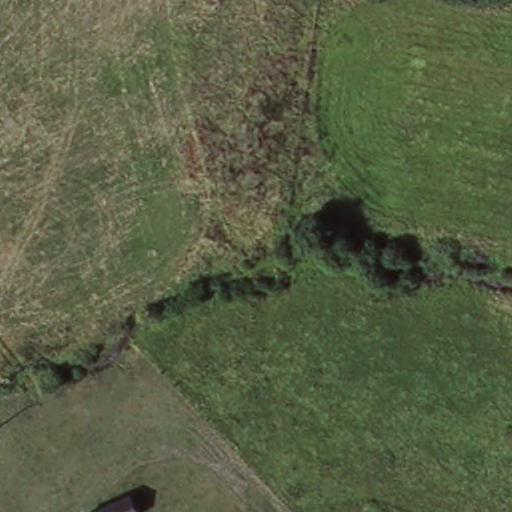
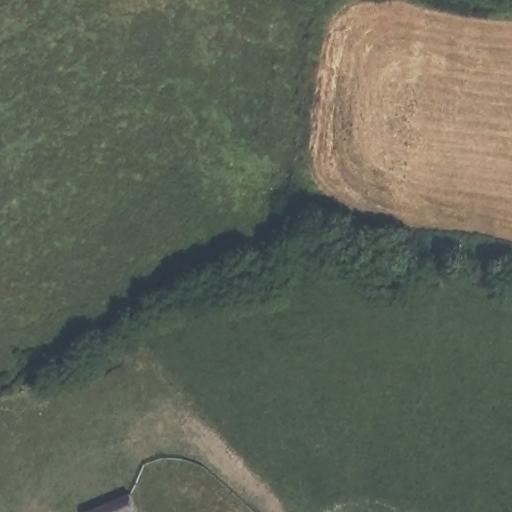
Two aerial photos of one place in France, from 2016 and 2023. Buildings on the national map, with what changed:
unchanged [(91,512),(91,511),(138,491),(146,512),(91,512)]

